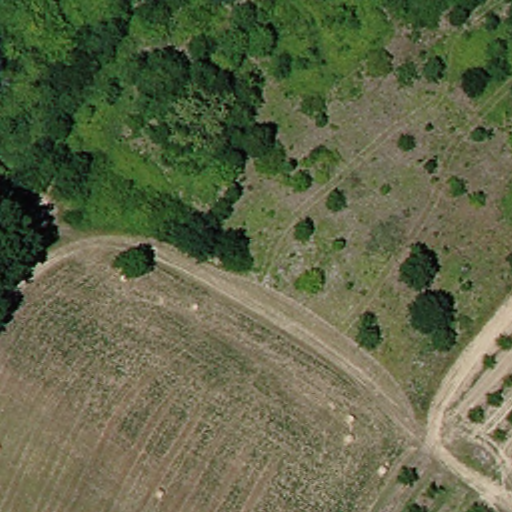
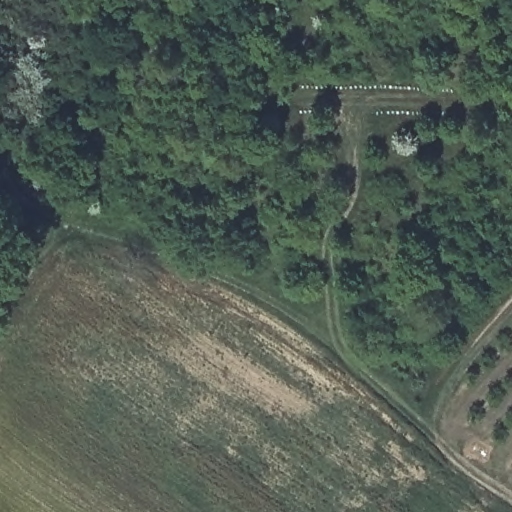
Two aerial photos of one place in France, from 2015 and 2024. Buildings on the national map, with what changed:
unchanged [(0,107),(0,12),(47,67),(0,107)]

